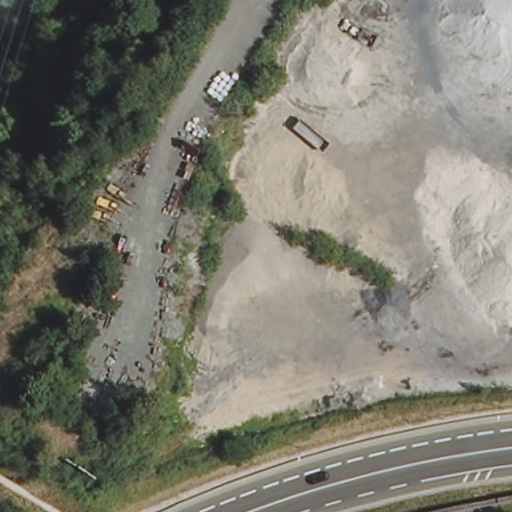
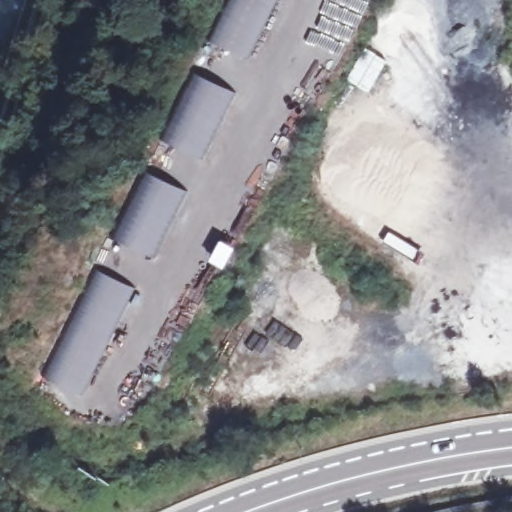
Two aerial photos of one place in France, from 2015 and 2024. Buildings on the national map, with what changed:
new [(231,0),(278,0),(250,59),(212,41),(231,0)]
new [(194,73),(237,92),(205,160),(165,142),(194,73)]
new [(147,173),(187,191),(155,258),(113,238),(147,173)]
new [(97,270),(135,289),(85,397),(43,377),(97,270)]

